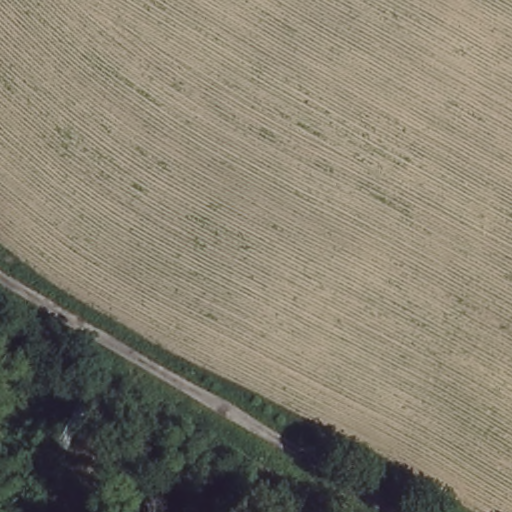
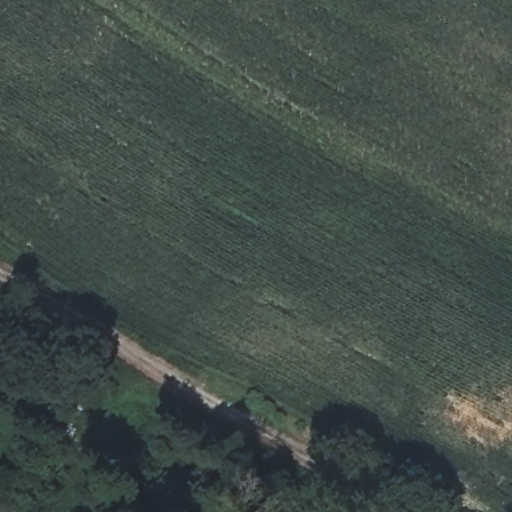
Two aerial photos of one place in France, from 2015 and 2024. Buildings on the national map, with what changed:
[]

